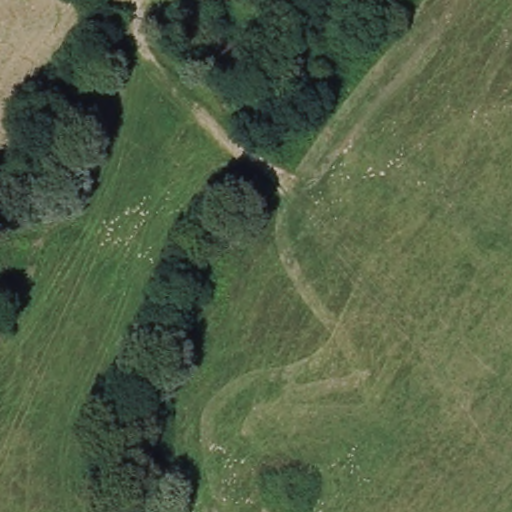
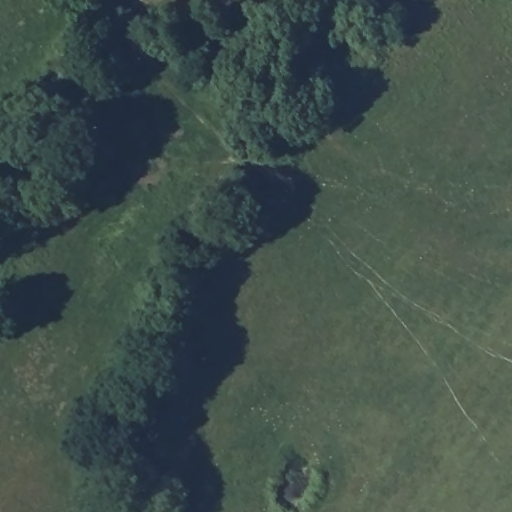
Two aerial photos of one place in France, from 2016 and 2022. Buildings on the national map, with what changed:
[]

